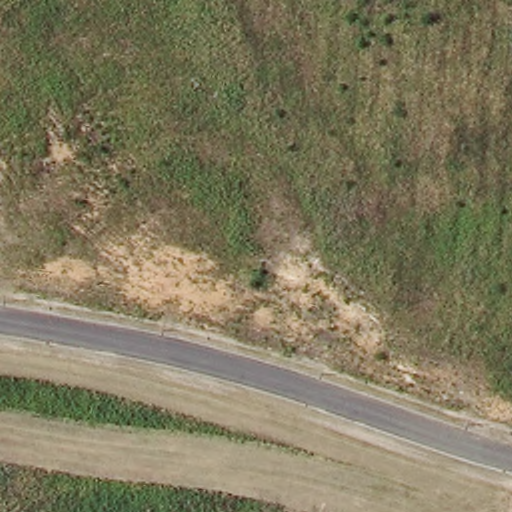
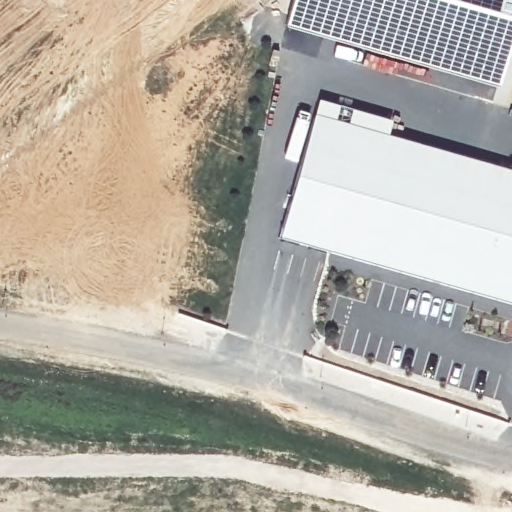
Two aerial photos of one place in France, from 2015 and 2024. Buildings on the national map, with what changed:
new [(289,0),(512,0),(512,95),(509,107),(457,91),(460,82),(456,80),(401,62),(282,27),(289,0)]
new [(318,114),(512,169),(512,301),(332,250),(345,201),(297,187),(318,114)]

